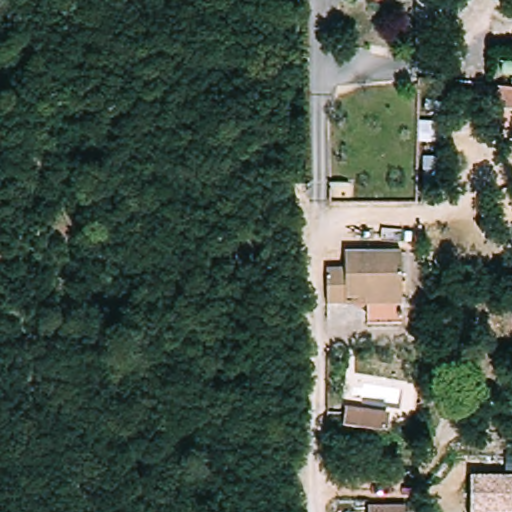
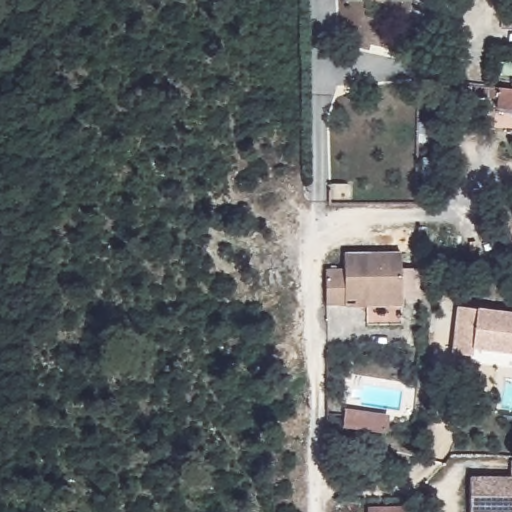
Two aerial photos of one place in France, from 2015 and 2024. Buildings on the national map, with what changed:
unchanged [(497,87),(512,90),(512,112),(498,109),(497,87)]
unchanged [(346,306),(327,307),(326,273),(347,272),(346,255),(402,254),(403,299),(403,305),(346,306)]
new [(455,326),(457,309),(512,314),(512,356),(473,350),(472,358),(453,356),(455,326)]
unchanged [(386,414),(385,429),(345,424),(347,410),(386,414)]
unchanged [(512,512),(463,512),(463,480),(512,480),(512,512)]
unchanged [(405,512),(368,512),(367,508),(405,507),(405,512)]

